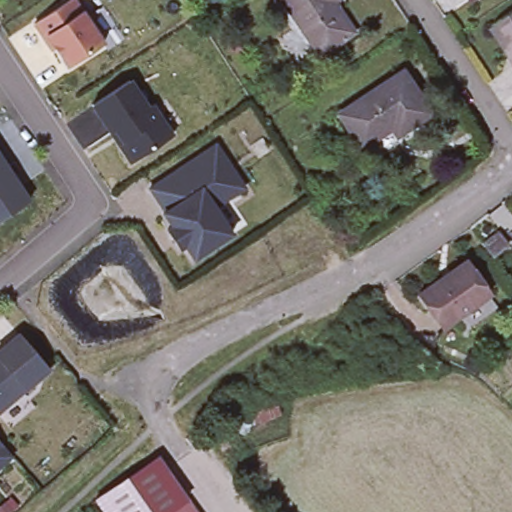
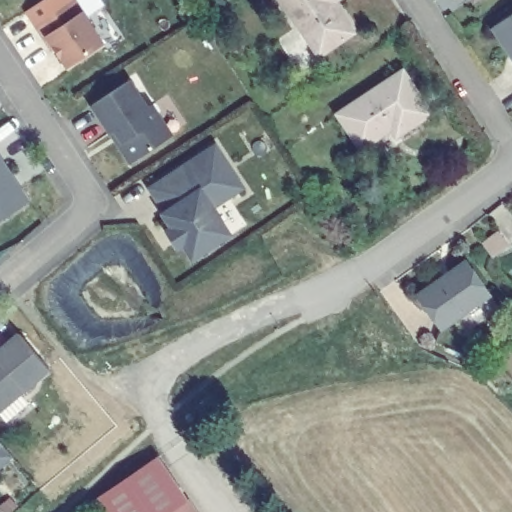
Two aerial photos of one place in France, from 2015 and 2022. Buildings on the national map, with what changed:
unchanged [(35,23),(70,0),(74,0),(103,44),(68,67),(56,48),(53,51),(45,37),(35,23)]
unchanged [(334,0),(353,30),(321,51),(288,0),(334,0)]
unchanged [(508,48),(495,27),(512,16),(512,49),(510,47),(508,48)]
unchanged [(403,72),(430,111),(399,132),(394,124),(363,144),(342,112),(403,72)]
unchanged [(92,105),(129,81),(147,108),(152,105),(172,136),(135,161),(128,159),(122,149),(111,133),(92,105)]
unchanged [(193,258),(185,245),(179,248),(167,229),(172,226),(162,212),(165,212),(150,187),(216,144),(232,170),(245,187),(214,207),(232,234),(193,258)]
unchanged [(0,221),(0,157),(12,176),(19,186),(30,202),(0,221)]
unchanged [(482,246),(493,237),(498,233),(507,246),(495,255),(491,257),(482,246)]
unchanged [(490,295),(442,328),(440,326),(418,294),(465,261),(483,285),(490,295)]
unchanged [(50,368),(0,410),(0,350),(20,333),(50,368)]
unchanged [(11,457),(0,466),(0,444),(11,457)]
unchanged [(160,512),(114,512),(100,491),(162,449),(191,491),(160,512)]
unchanged [(191,491),(206,512),(160,512),(191,491)]

